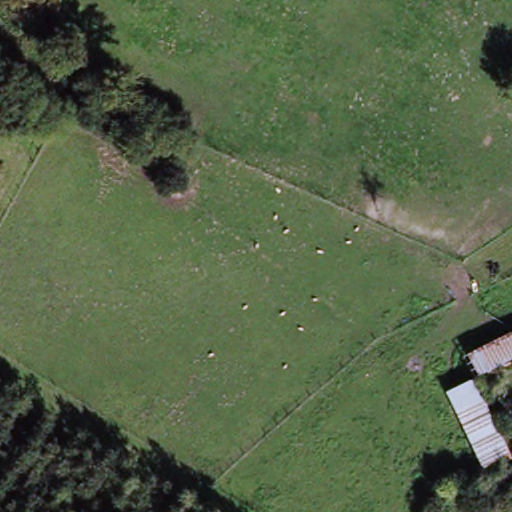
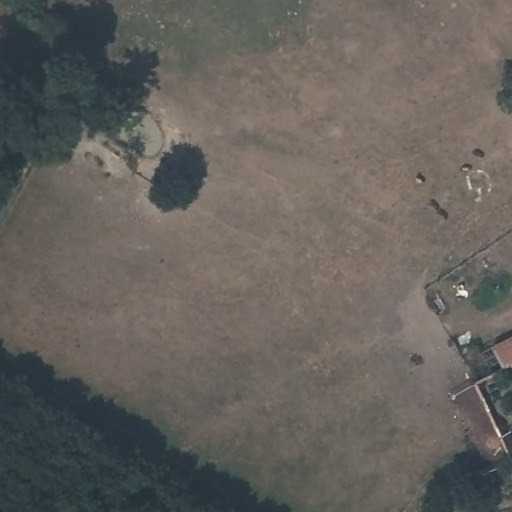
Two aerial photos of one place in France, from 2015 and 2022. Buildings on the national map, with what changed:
unchanged [(512,335),(512,363),(480,381),(476,384),(463,361),(512,335)]
unchanged [(508,455),(488,467),(448,399),(470,387),(508,455)]

